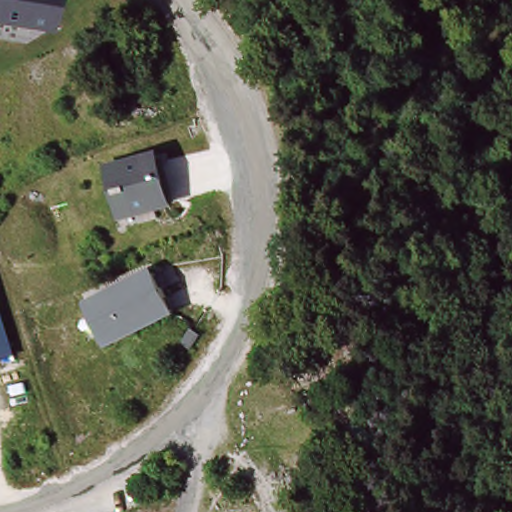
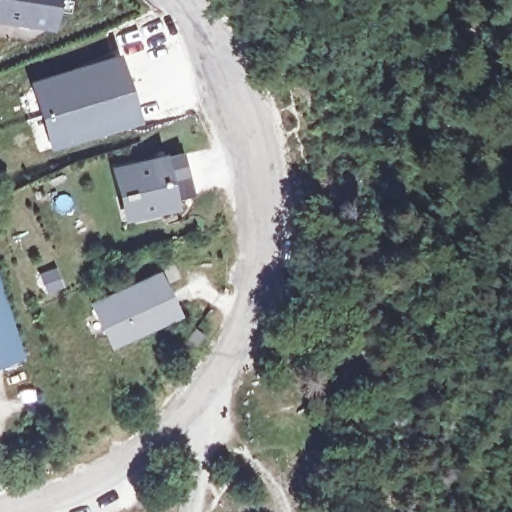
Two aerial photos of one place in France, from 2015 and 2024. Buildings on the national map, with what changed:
unchanged [(54,0),(51,24),(0,16),(0,0),(54,0)]
new [(116,49),(141,120),(49,150),(27,79),(116,49)]
unchanged [(123,195),(116,169),(160,158),(171,202),(137,211),(127,214),(123,195)]
unchanged [(158,271),(178,312),(113,343),(93,302),(158,271)]
unchanged [(22,352),(0,359),(0,282),(22,352)]
unchanged [(183,343),(193,328),(196,331),(202,335),(191,350),(187,346),(183,343)]

